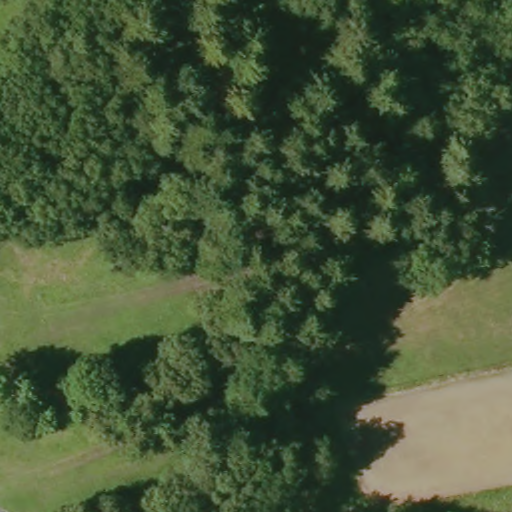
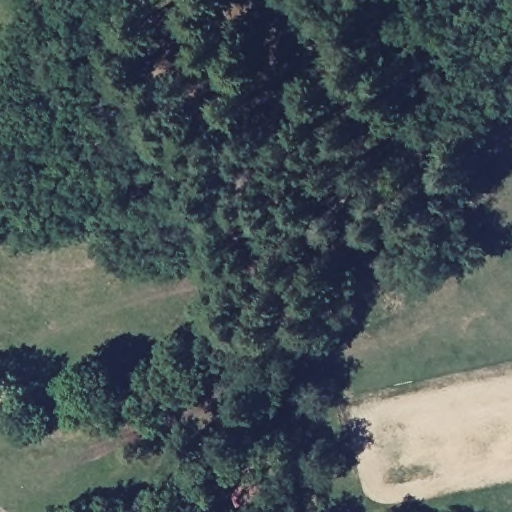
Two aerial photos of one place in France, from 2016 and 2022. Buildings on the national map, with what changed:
[]

